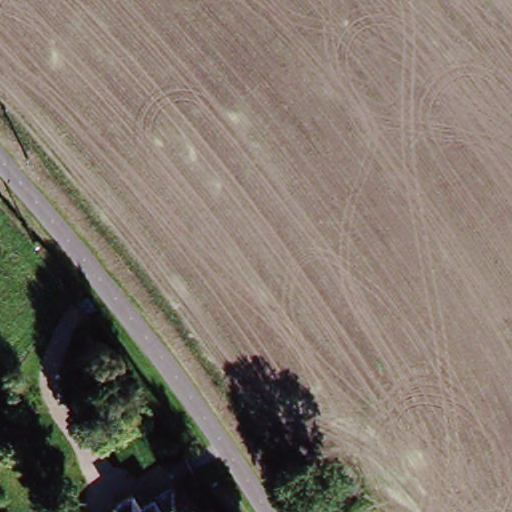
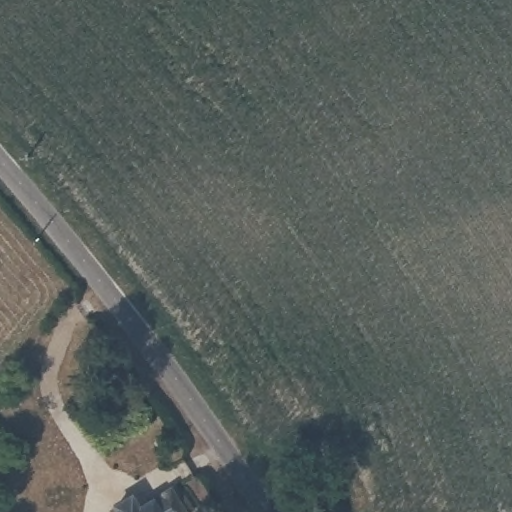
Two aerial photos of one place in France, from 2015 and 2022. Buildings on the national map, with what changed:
unchanged [(158,512),(144,512),(153,505),(158,512)]

